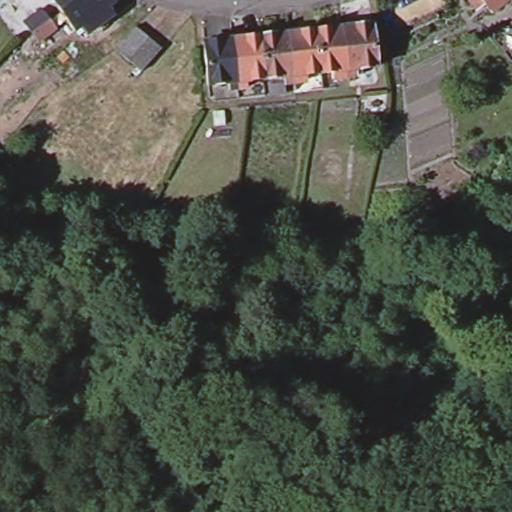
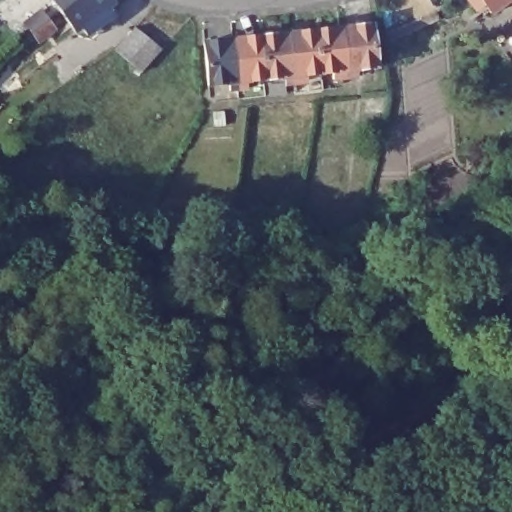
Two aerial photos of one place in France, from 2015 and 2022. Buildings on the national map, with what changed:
unchanged [(56,0),(70,0),(62,7),(56,0)]
unchanged [(105,9),(110,16),(85,35),(82,27),(78,29),(62,7),(70,0),(112,0),(114,2),(105,9)]
unchanged [(488,9),(480,15),(469,2),(471,0),(509,0),(492,15),(488,9)]
unchanged [(34,34),(27,24),(21,16),(37,3),(43,12),(51,22),(34,34)]
unchanged [(512,12),(512,21),(508,15),(512,12)]
unchanged [(136,66),(124,54),(114,45),(132,21),(145,31),(157,42),(136,66)]
unchanged [(379,67),(360,70),(361,79),(350,80),(345,29),(372,26),(379,67)]
unchanged [(350,80),(340,81),(340,72),(324,74),(319,32),(345,29),(350,80)]
unchanged [(324,74),(304,77),(305,85),(295,86),(290,35),(319,32),(324,74)]
unchanged [(295,86),(289,86),(289,77),(266,80),(247,82),(248,91),(241,92),(234,41),(262,38),(290,35),(295,86)]
unchanged [(234,41),(241,92),(232,92),(232,85),(208,86),(205,45),(234,41)]

